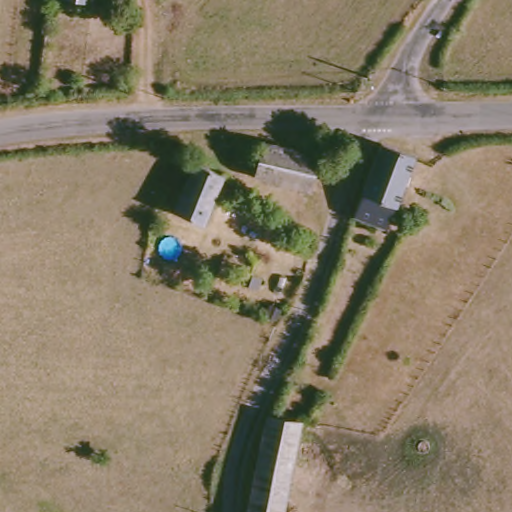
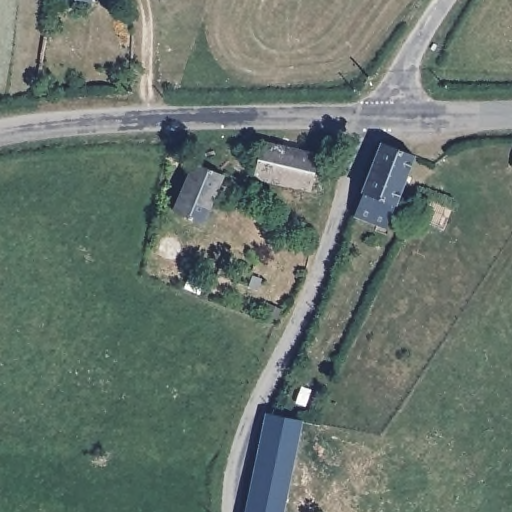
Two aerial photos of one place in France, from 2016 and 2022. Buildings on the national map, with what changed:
unchanged [(314,195),(262,182),(258,177),(265,146),(321,158),(314,195)]
unchanged [(418,157),(392,233),(361,221),(387,146),(418,157)]
unchanged [(207,230),(180,218),(197,166),(227,179),(207,230)]
unchanged [(305,422),(288,512),(255,512),(273,421),(305,422)]

